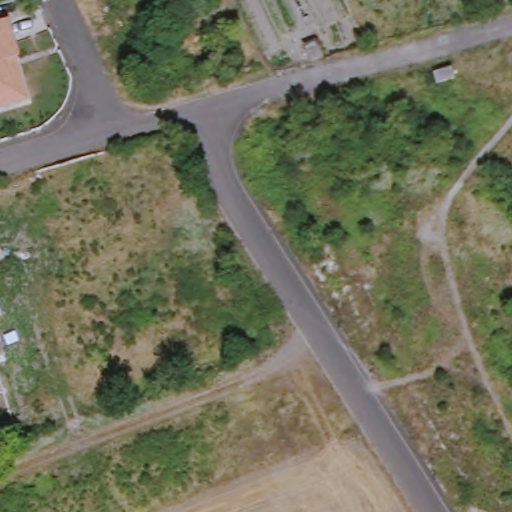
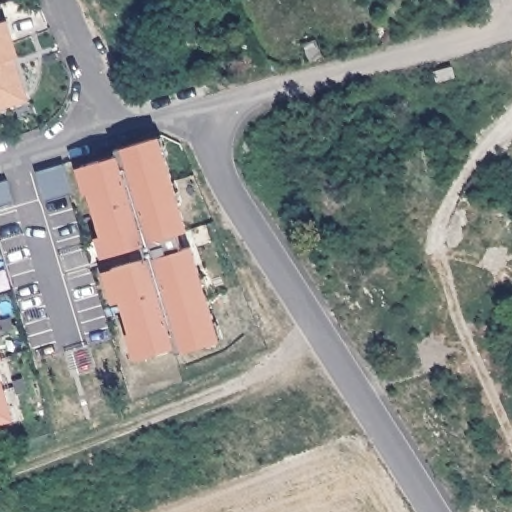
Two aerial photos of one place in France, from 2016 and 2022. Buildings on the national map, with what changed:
unchanged [(10,104),(0,107),(0,22),(7,20),(18,56),(11,58),(15,69),(19,71),(23,87),(27,99),(10,104)]
unchanged [(456,76),(438,82),(435,71),(453,66),(456,76)]
new [(175,183),(168,185),(174,205),(180,204),(188,232),(114,254),(109,235),(104,236),(91,192),(99,190),(91,163),(120,155),(118,149),(155,138),(160,157),(167,156),(175,183)]
new [(184,250),(134,264),(130,250),(180,234),(184,250)]
new [(201,276),(194,278),(200,298),(206,296),(214,324),(208,326),(213,345),(176,355),(174,349),(146,357),(139,331),(132,333),(114,270),(134,264),(193,248),(201,276)]
new [(3,389),(0,390),(0,380),(3,389)]
new [(3,389),(12,419),(0,422),(0,390),(3,389)]

